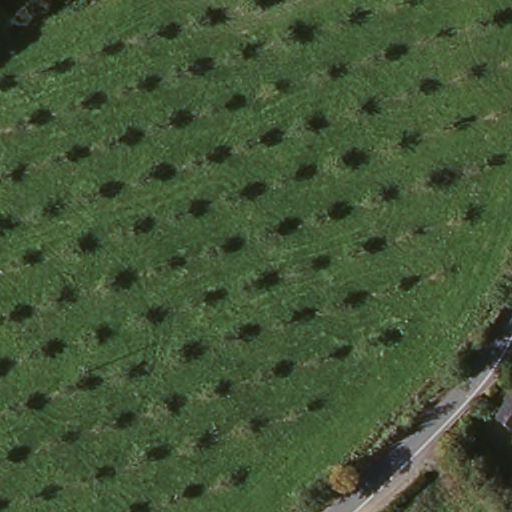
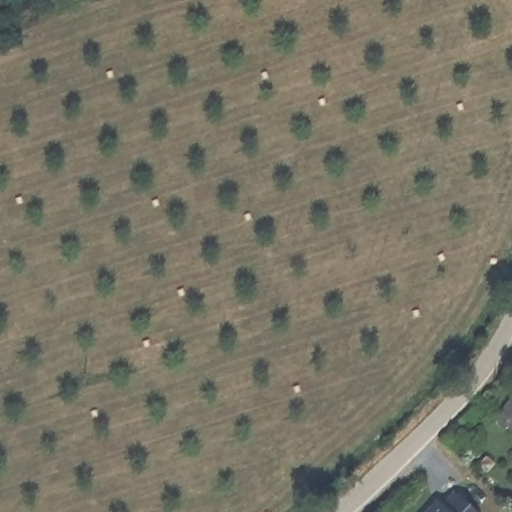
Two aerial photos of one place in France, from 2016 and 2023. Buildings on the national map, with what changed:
unchanged [(512,390),(512,423),(497,412),(512,390)]
new [(429,505),(427,502),(438,492),(442,496),(455,483),(477,505),(470,512),(422,512),(429,505)]

